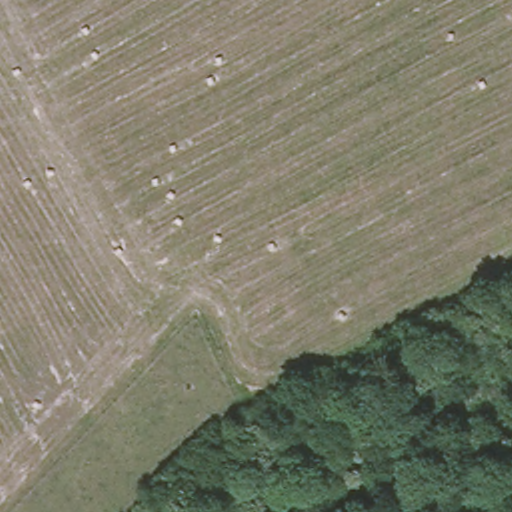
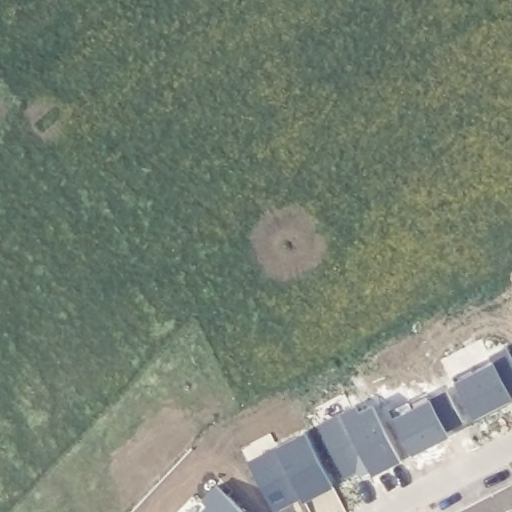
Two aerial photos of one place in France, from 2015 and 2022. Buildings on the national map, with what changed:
new [(512,356),(512,395),(472,417),(456,384),(512,356)]
new [(444,386),(462,419),(405,451),(392,413),(444,386)]
new [(372,403),(400,459),(362,477),(358,467),(336,477),(317,427),(372,403)]
new [(272,512),(270,512),(246,457),(302,430),(325,486),(272,512)]
new [(200,512),(219,490),(242,512),(200,512)]

